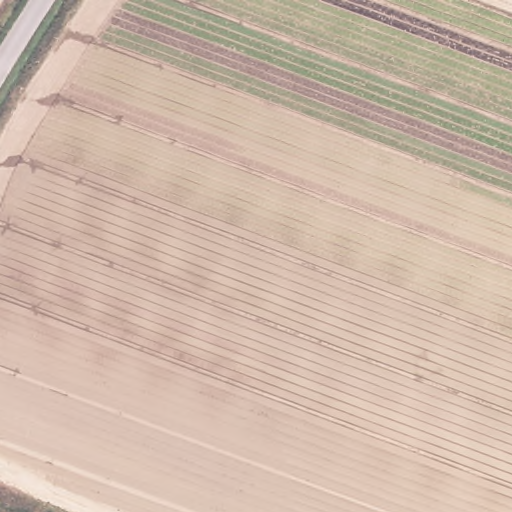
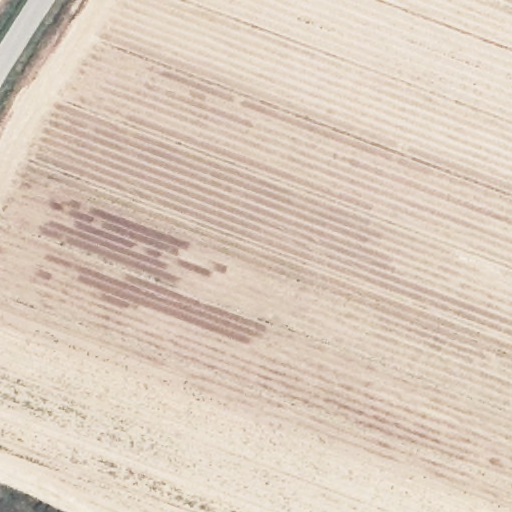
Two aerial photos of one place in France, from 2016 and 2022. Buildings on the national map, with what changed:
[]

